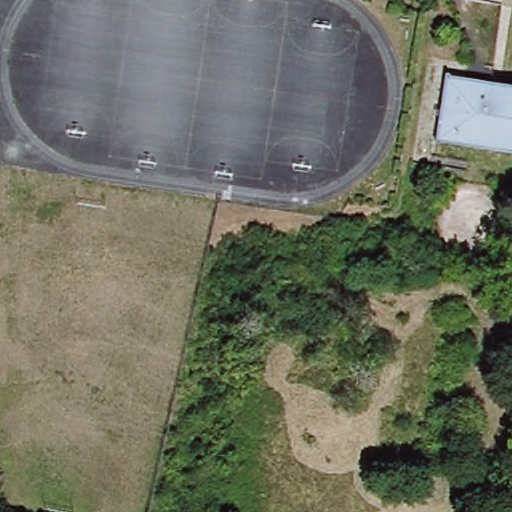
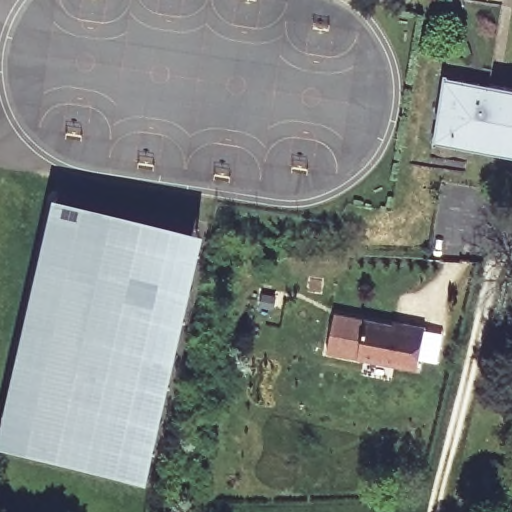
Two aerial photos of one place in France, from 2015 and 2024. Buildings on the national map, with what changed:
unchanged [(442,141),(437,135),(447,74),(512,84),(512,152),(442,141)]
new [(213,225),(156,475),(5,440),(62,192),(213,225)]
new [(337,313),(406,327),(406,323),(428,328),(420,370),(330,352),(337,313)]

